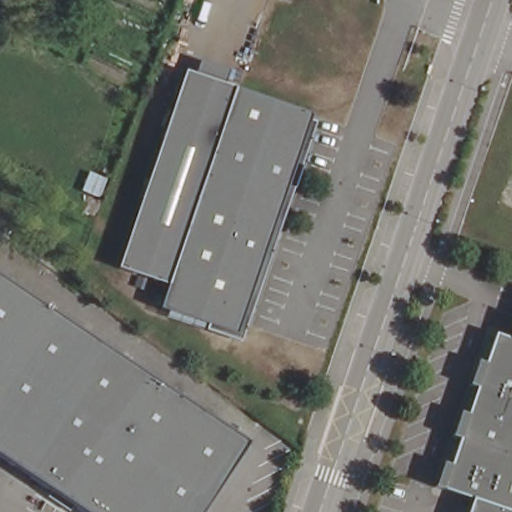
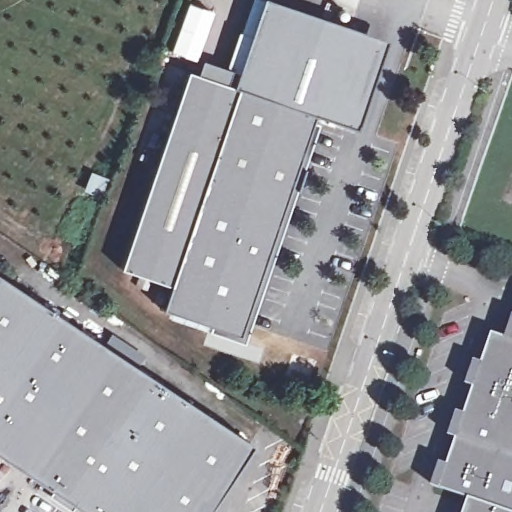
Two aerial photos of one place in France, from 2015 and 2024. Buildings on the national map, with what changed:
new [(262,0),(267,0),(384,38),(354,129),(313,115),(312,121),(233,89),(262,0)]
unchanged [(196,77),(202,63),(229,70),(224,86),(312,121),(243,339),(162,313),(169,286),(118,269),(188,74),(196,77)]
unchanged [(0,454),(0,277),(253,443),(205,512),(87,512),(0,454)]
unchanged [(469,500),(432,487),(447,467),(456,439),(449,437),(464,417),(474,388),(467,385),(482,365),(492,334),(507,339),(512,331),(512,512),(464,512),(469,500)]

